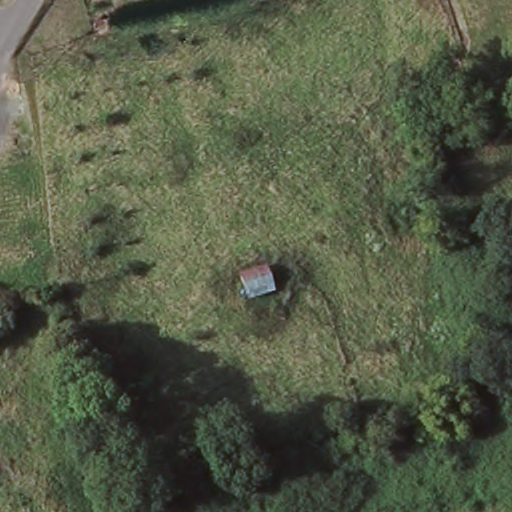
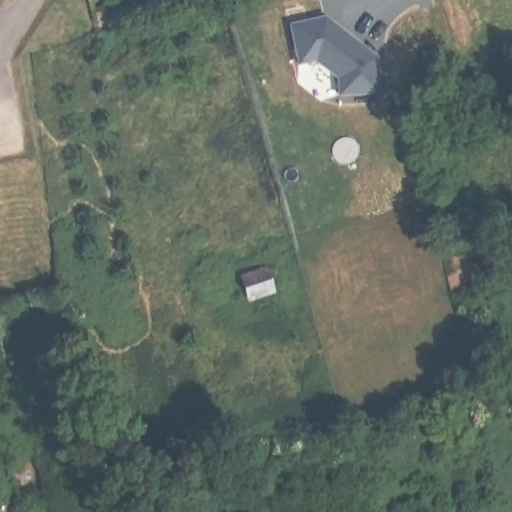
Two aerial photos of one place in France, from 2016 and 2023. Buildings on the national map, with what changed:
new [(325,19),(377,58),(379,97),(338,100),(338,80),(317,63),(297,67),(288,29),(325,19)]
unchanged [(272,272),(277,298),(247,305),(241,280),(272,272)]

